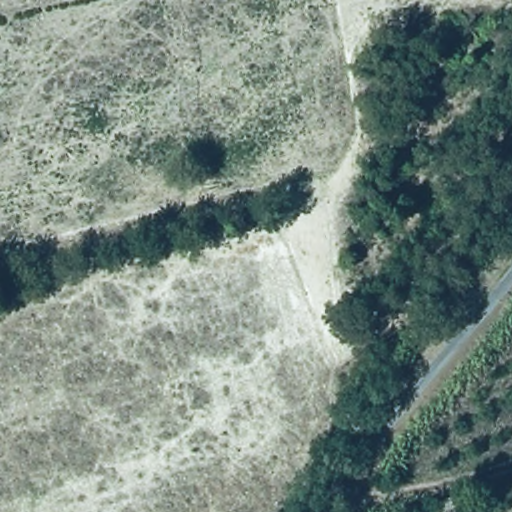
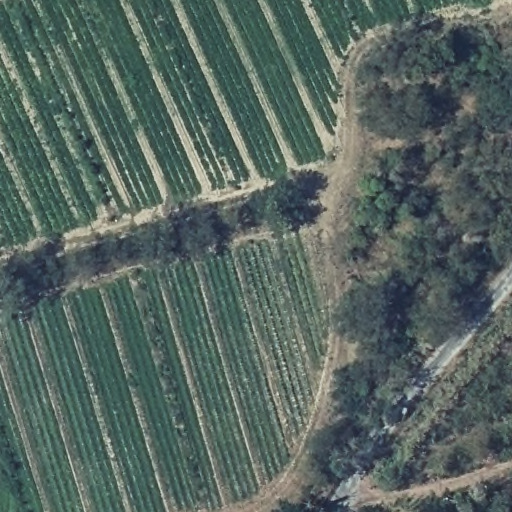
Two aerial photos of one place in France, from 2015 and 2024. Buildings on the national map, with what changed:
unchanged [(455,499),(466,512),(433,512),(431,510),(455,499)]
unchanged [(396,512),(381,512),(392,507),(396,512)]

